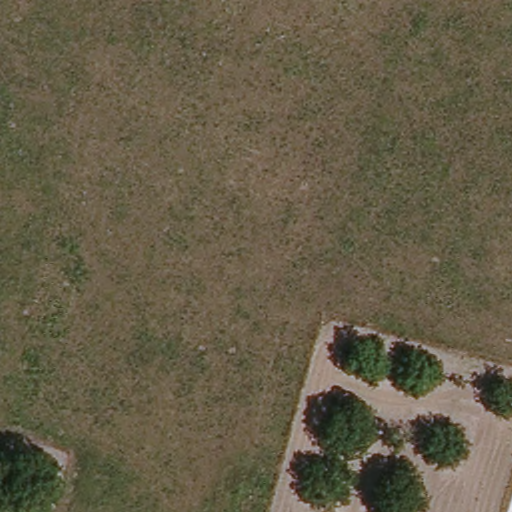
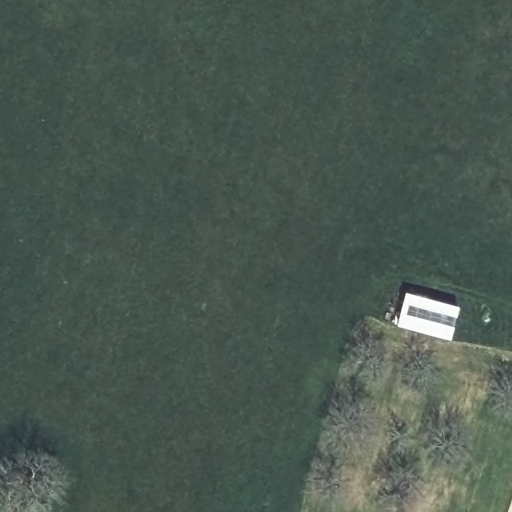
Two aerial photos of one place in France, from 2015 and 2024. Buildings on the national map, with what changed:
new [(459,306),(451,339),(397,324),(406,292),(459,306)]

